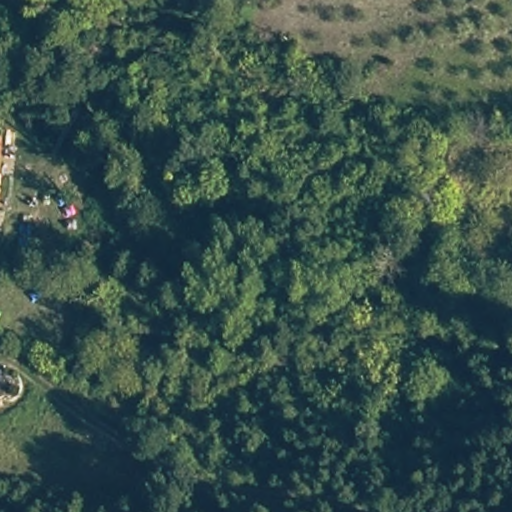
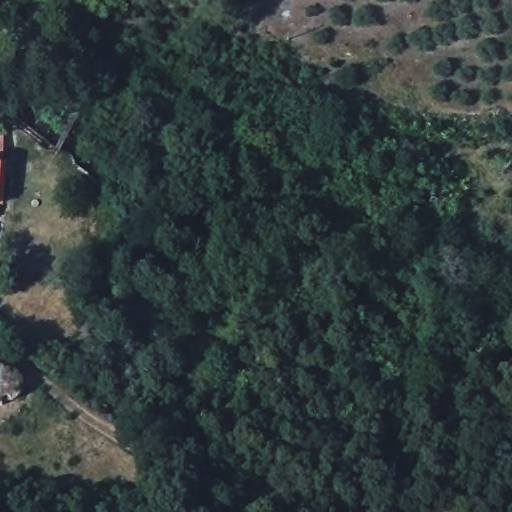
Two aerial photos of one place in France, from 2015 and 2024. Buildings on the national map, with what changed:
unchanged [(2,130),(2,163),(0,186),(0,130),(2,130)]

